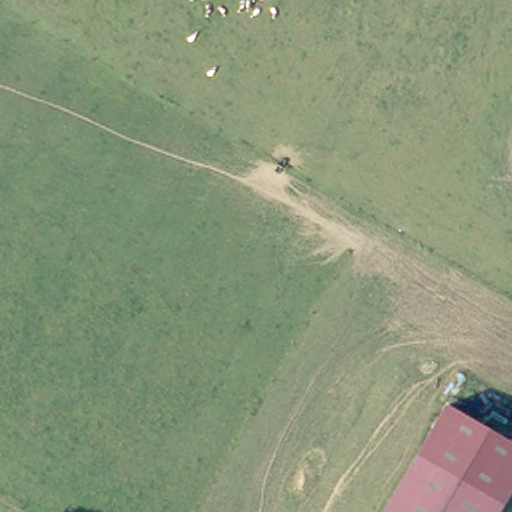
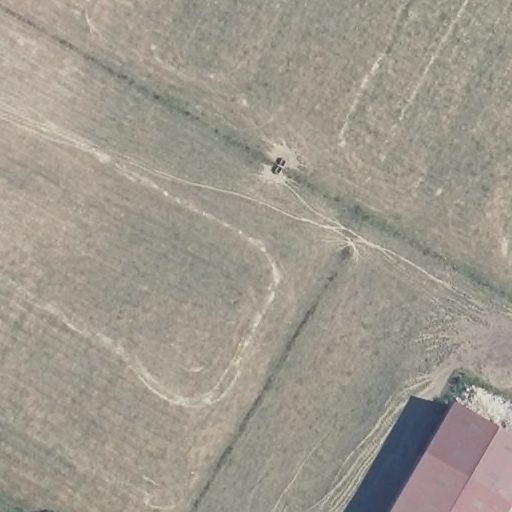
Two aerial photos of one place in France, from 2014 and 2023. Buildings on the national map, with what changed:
unchanged [(512,447),(512,501),(507,509),(418,460),(447,411),(512,447)]
unchanged [(418,460),(507,509),(506,512),(390,512),(418,460)]

